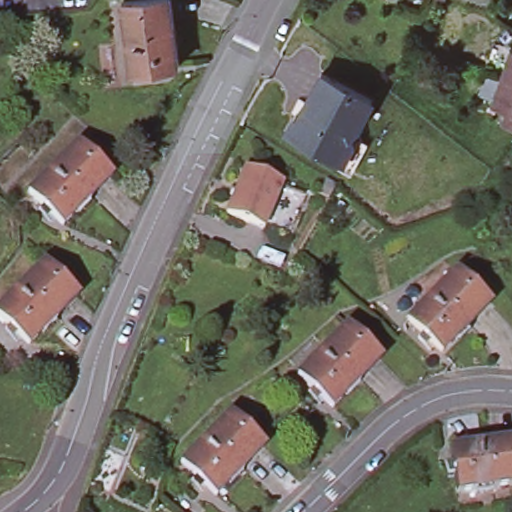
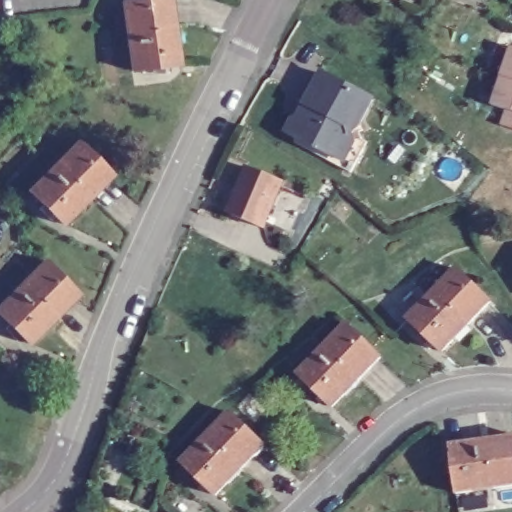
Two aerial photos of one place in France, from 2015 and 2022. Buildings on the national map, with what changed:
unchanged [(169,0),(177,62),(132,69),(122,2),(136,0),(169,0)]
unchanged [(510,109),(495,104),(512,54),(512,126),(505,124),(510,109)]
unchanged [(349,167),(325,156),(329,149),(285,127),(290,116),(297,114),(317,73),(320,69),(371,96),(362,112),(357,122),(349,128),(352,137),(362,142),(349,167)]
unchanged [(110,174),(60,222),(27,187),(76,139),(110,174)]
unchanged [(280,182),(262,229),(225,214),(244,167),(280,182)]
unchanged [(77,293),(29,342),(0,313),(0,305),(43,261),(77,293)]
unchanged [(490,300),(442,348),(410,316),(458,268),(490,300)]
unchanged [(381,356),(333,404),(300,371),(347,322),(381,356)]
unchanged [(264,445),(215,494),(182,459),(230,410),(264,445)]
unchanged [(512,484),(459,492),(452,444),(512,436),(512,484)]

